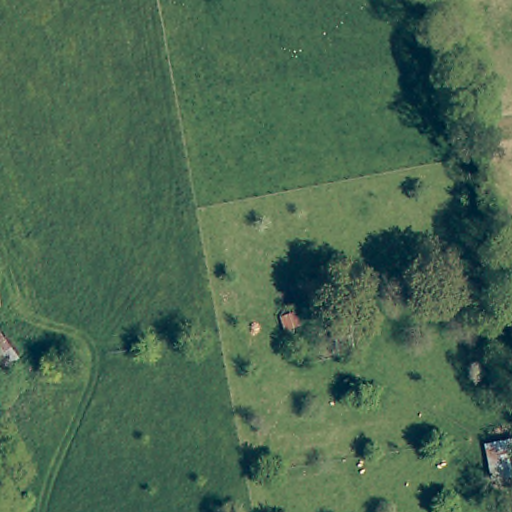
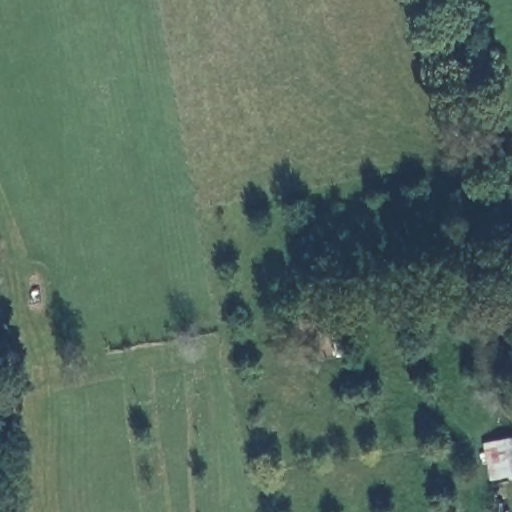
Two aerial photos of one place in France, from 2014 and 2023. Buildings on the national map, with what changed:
unchanged [(0,370),(0,333),(17,357),(0,370)]

